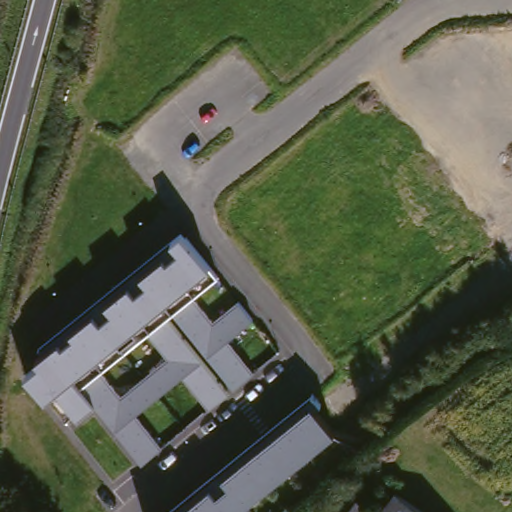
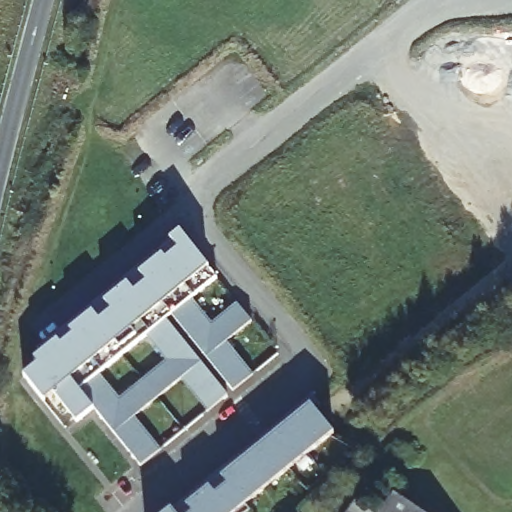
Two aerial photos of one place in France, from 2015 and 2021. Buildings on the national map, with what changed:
unchanged [(207,411),(180,378),(133,417),(159,447),(139,466),(101,418),(90,406),(75,421),(55,391),(40,402),(21,377),(39,365),(29,355),(180,234),(207,270),(218,278),(192,298),(210,324),(235,303),(250,317),(226,342),(253,373),(207,411)]
unchanged [(166,512),(305,397),(334,433),(237,512),(166,512)]
unchanged [(391,512),(401,498),(420,512),(391,512)]
unchanged [(374,512),(356,512),(363,503),(374,512)]

